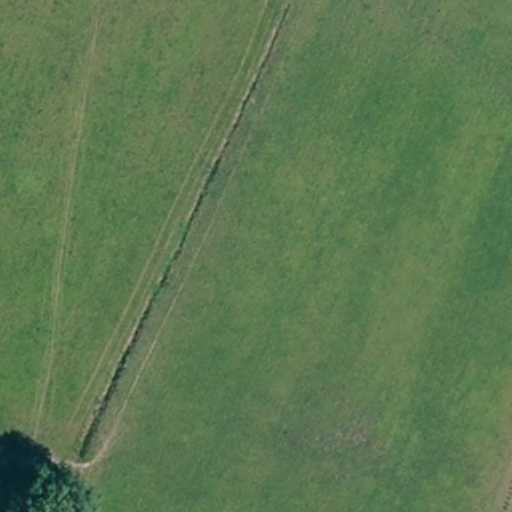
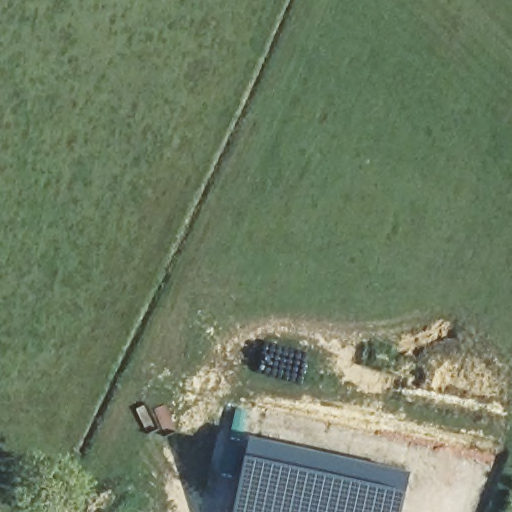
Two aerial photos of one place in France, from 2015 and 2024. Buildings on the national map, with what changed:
new [(236,486),(249,436),(411,473),(402,512),(231,512),(236,486)]

